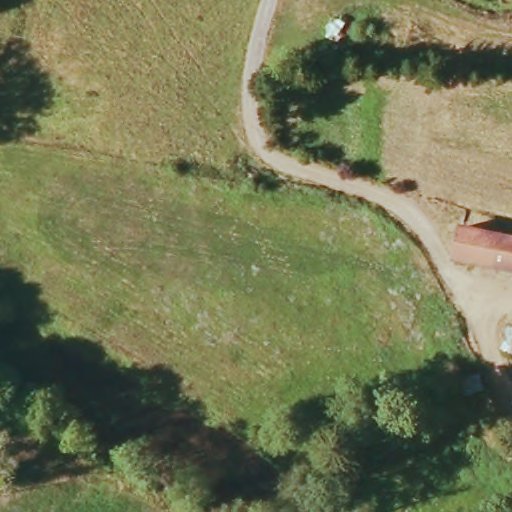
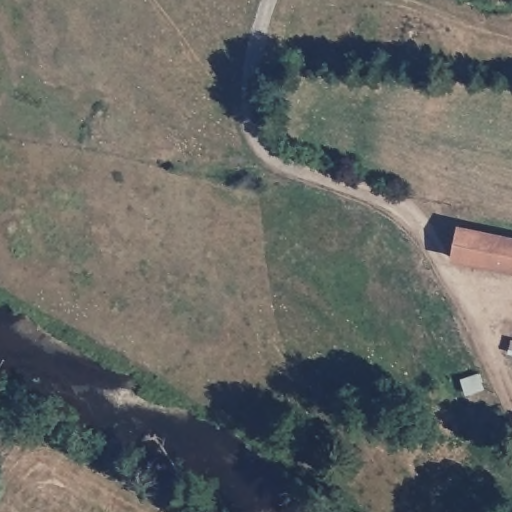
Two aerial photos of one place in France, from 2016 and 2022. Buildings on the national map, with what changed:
unchanged [(450,260),(457,227),(512,240),(512,274),(450,260)]
unchanged [(502,346),(502,330),(512,330),(512,346),(502,346)]

